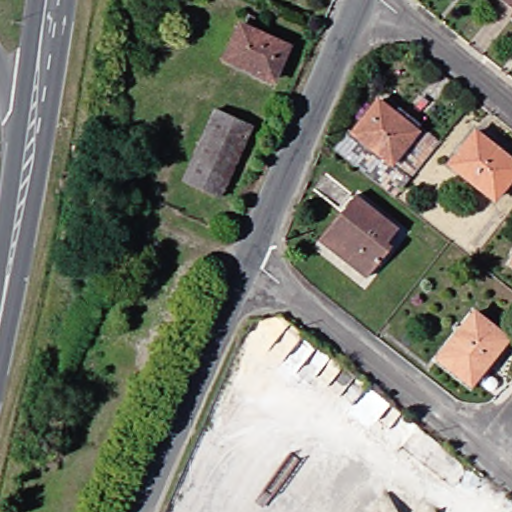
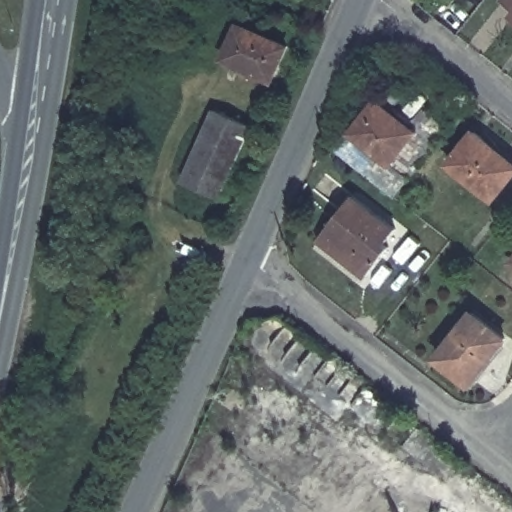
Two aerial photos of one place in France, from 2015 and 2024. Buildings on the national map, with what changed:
unchanged [(287,43),(273,78),(229,60),(243,24),(287,43)]
unchanged [(354,138),(380,108),(385,112),(390,105),(423,134),(417,140),(392,170),(354,138)]
unchanged [(251,123),(224,194),(186,180),(212,110),(251,123)]
unchanged [(476,134),(482,138),(488,132),(512,151),(512,175),(492,200),(451,166),(476,134)]
unchanged [(398,222),(386,236),(393,242),(366,275),(328,244),(317,236),(339,209),(356,187),(398,222)]
unchanged [(474,388),(439,359),(443,353),(481,308),(512,333),(506,340),(511,344),(474,388)]

